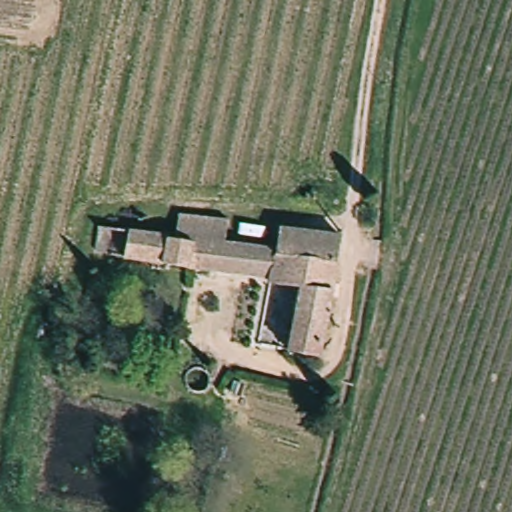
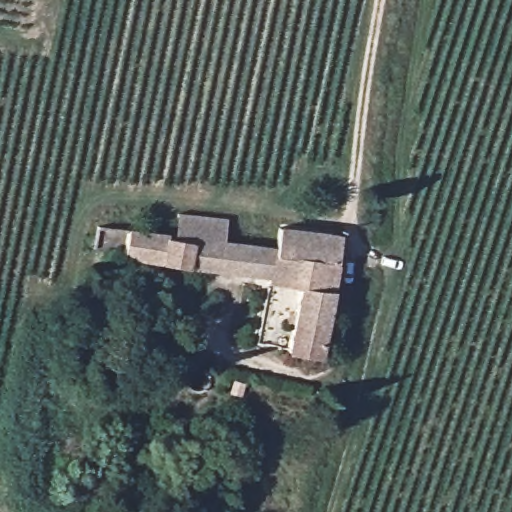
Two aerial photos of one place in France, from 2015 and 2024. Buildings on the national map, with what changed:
unchanged [(287,358),(299,295),(270,289),(272,283),(127,248),(130,221),(178,230),(182,209),(228,219),(225,239),(282,249),(286,231),(342,243),(317,363),(287,358)]

